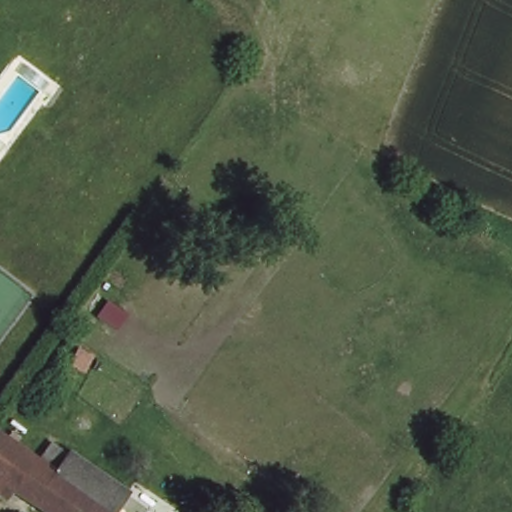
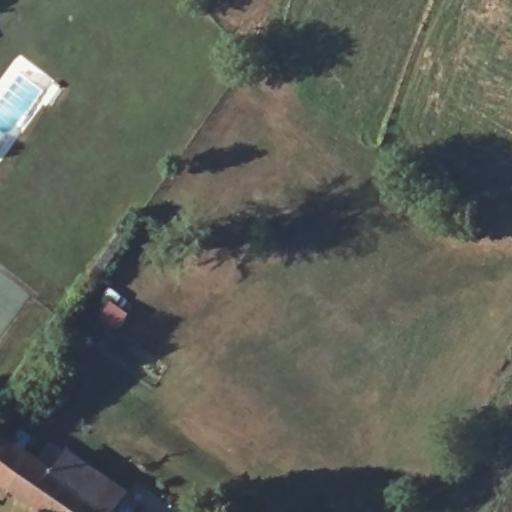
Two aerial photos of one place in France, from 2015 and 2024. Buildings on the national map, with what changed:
unchanged [(0,474),(0,440),(1,438),(43,467),(53,451),(87,473),(91,467),(128,492),(114,512),(55,512),(0,473),(0,474)]

